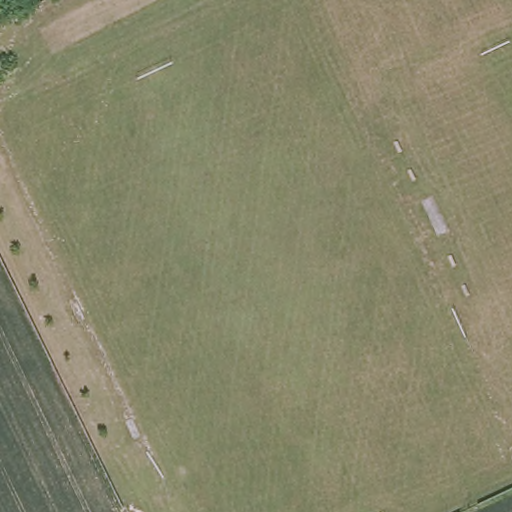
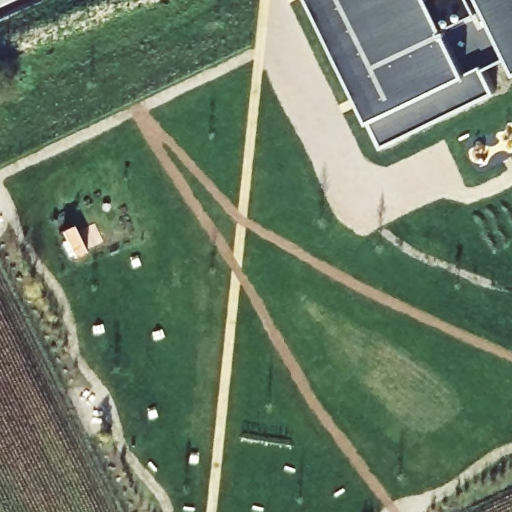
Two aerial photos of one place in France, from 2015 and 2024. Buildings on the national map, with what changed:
new [(483,67),(490,94),(382,142),(314,0),(512,0),(512,62),(509,56),(483,67)]
demolished [(451,229),(438,234),(422,199),(434,193),(451,229)]

